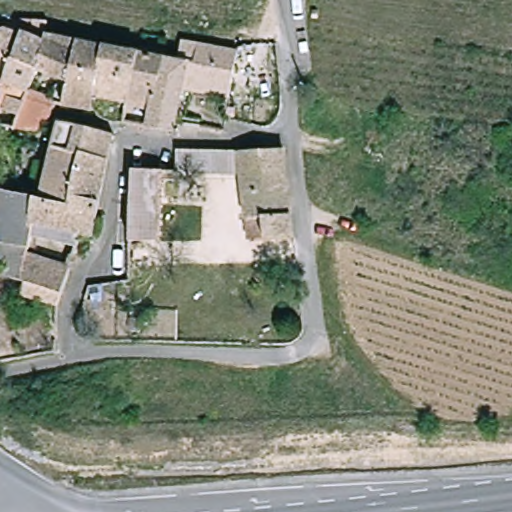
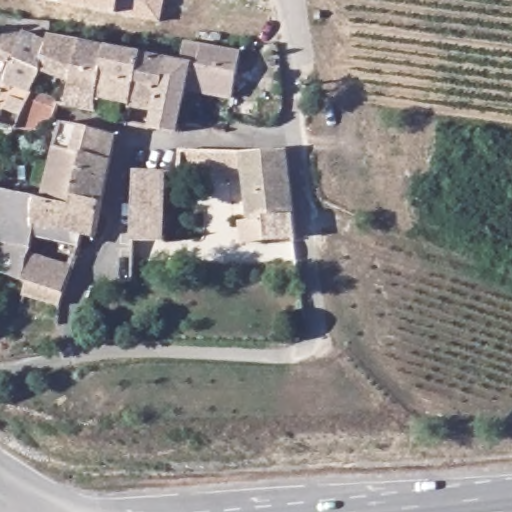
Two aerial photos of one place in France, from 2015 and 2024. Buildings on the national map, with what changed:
new [(117,14),(61,3),(48,0),(165,0),(160,23),(117,14)]
unchanged [(3,95),(0,94),(0,47),(4,36),(5,33),(9,31),(26,35),(28,33),(55,44),(57,38),(86,45),(83,59),(75,88),(44,75),(38,93),(58,100),(50,119),(59,121),(45,135),(25,133),(30,119),(0,106),(3,95)]
unchanged [(86,45),(111,51),(97,116),(70,110),(75,88),(83,59),(86,45)]
unchanged [(144,122),(154,125),(156,118),(170,65),(196,71),(201,46),(240,51),(230,105),(197,98),(189,133),(179,131),(177,139),(164,137),(162,135),(152,135),(142,132),(144,122)]
unchanged [(136,107),(121,104),(116,126),(108,125),(104,124),(102,121),(100,116),(97,116),(111,51),(146,59),(136,107)]
unchanged [(156,118),(134,113),(136,107),(146,59),(170,65),(156,118)]
unchanged [(25,282),(3,273),(4,191),(23,196),(46,202),(62,152),(59,151),(63,131),(65,131),(67,128),(90,132),(118,138),(112,161),(95,237),(85,237),(81,248),(36,238),(33,255),(73,271),(63,301),(63,306),(23,294),(25,282)]
unchanged [(266,246),(263,222),(249,222),(243,168),(233,167),(233,157),(243,157),(288,153),(294,211),(298,233),(299,243),(266,246)]
unchanged [(176,160),(207,161),(206,174),(176,172),(176,160)]
unchanged [(138,172),(168,173),(163,245),(133,243),(138,172)]

